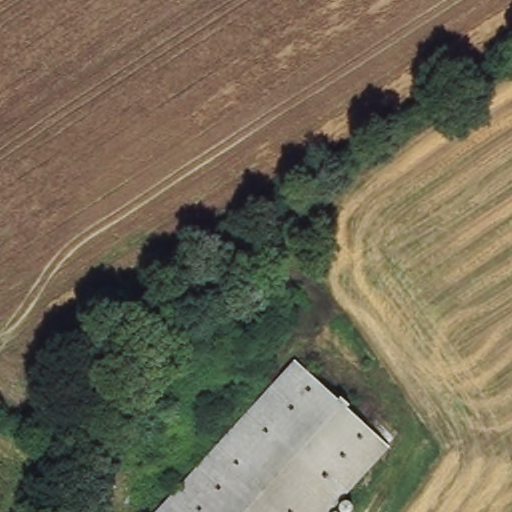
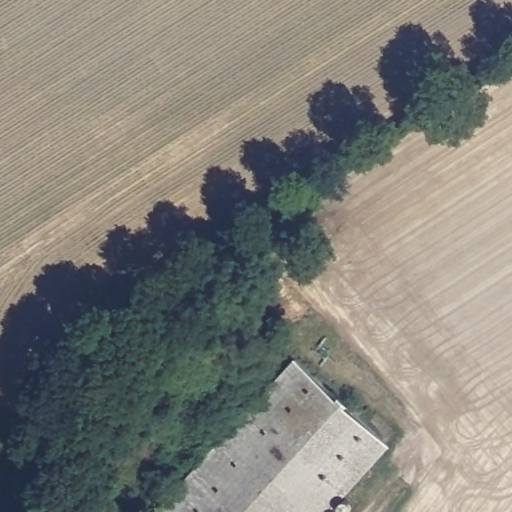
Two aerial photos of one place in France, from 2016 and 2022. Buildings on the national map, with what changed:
unchanged [(328,512),(156,512),(295,360),(388,446),(328,512)]

